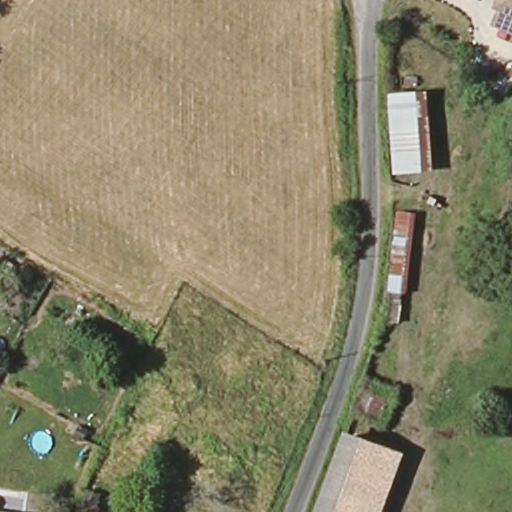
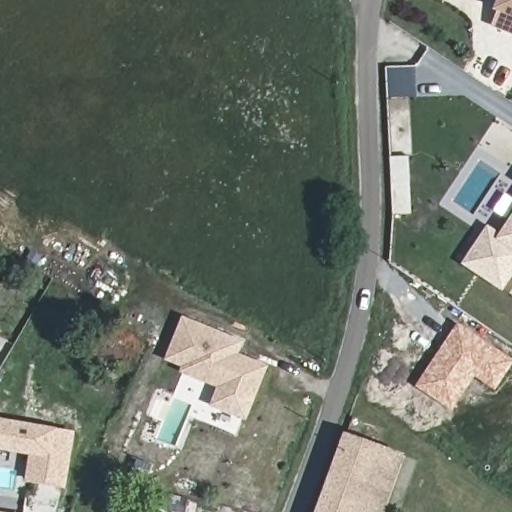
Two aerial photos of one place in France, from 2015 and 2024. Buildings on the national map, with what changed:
unchanged [(491,21),(497,9),(492,6),(495,0),(512,0),(512,31),(491,21)]
demolished [(428,90),(434,175),(392,175),(386,91),(428,90)]
demolished [(389,324),(402,212),(416,215),(398,327),(389,324)]
new [(492,227),(504,235),(512,223),(512,276),(505,286),(469,261),(492,227)]
demolished [(426,364),(412,349),(449,313),(464,330),(426,364)]
new [(164,359),(181,315),(244,341),(238,355),(269,366),(245,422),(209,406),(216,388),(179,373),(164,359)]
new [(452,411),(415,386),(457,322),(512,359),(512,364),(494,388),(474,377),(452,411)]
demolished [(381,423),(359,415),(364,395),(389,401),(381,423)]
new [(68,490),(26,482),(30,454),(0,449),(0,416),(76,430),(68,490)]
unchanged [(387,455),(364,512),(325,512),(352,440),(387,455)]
unchanged [(406,463),(387,512),(364,512),(387,455),(406,463)]

